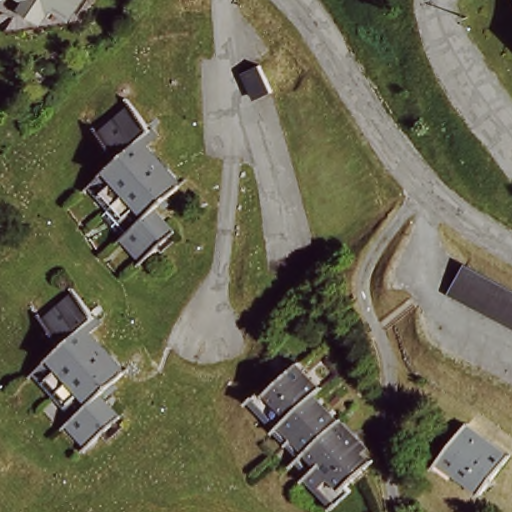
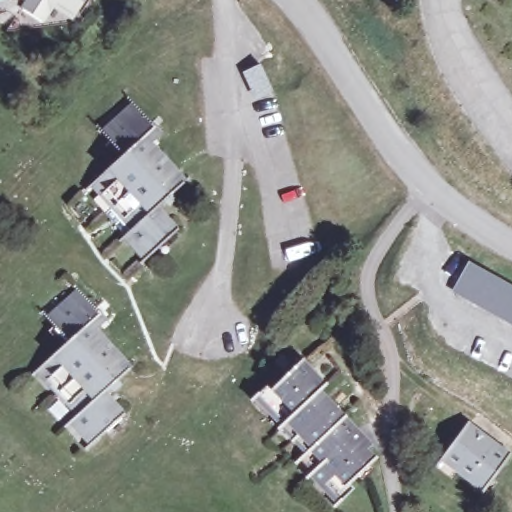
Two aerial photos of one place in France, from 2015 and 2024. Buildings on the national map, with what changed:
unchanged [(50,1),(42,14),(20,0),(75,0),(67,12),(50,1)]
unchanged [(246,73),(260,66),(273,92),(258,99),(255,91),(250,82),(246,73)]
unchanged [(183,220),(152,249),(130,226),(137,219),(97,174),(128,146),(107,124),(140,95),(167,125),(155,136),(189,175),(163,198),(183,220)]
unchanged [(455,292),(470,265),(512,289),(512,324),(455,292)]
unchanged [(130,405),(98,434),(77,411),(84,405),(43,361),(73,332),(52,310),(84,281),(112,310),(100,322),(135,360),(110,383),(130,405)]
unchanged [(324,383),(318,389),(368,441),(363,446),(375,457),(350,480),(355,485),(342,498),(315,470),(317,467),(303,452),(313,443),(288,417),(285,420),(257,390),(277,372),(280,376),(300,358),(324,383)]
unchanged [(509,459),(487,489),(443,457),(466,427),(509,459)]

